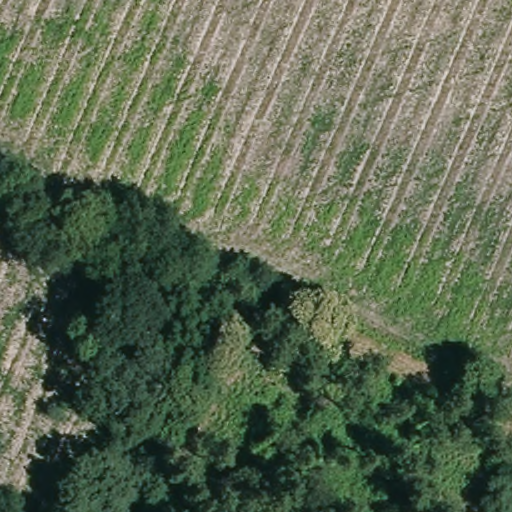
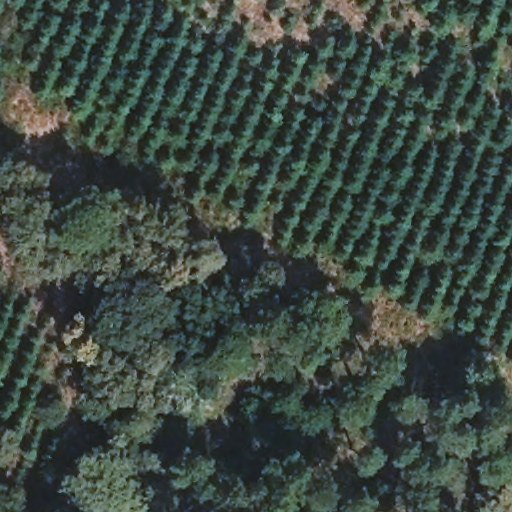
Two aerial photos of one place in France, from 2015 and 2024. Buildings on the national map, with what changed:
[]

